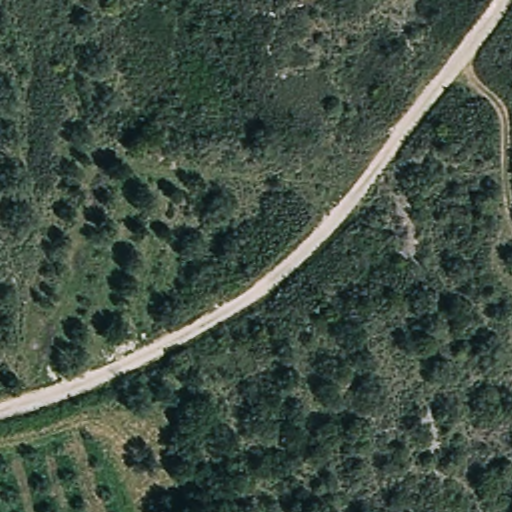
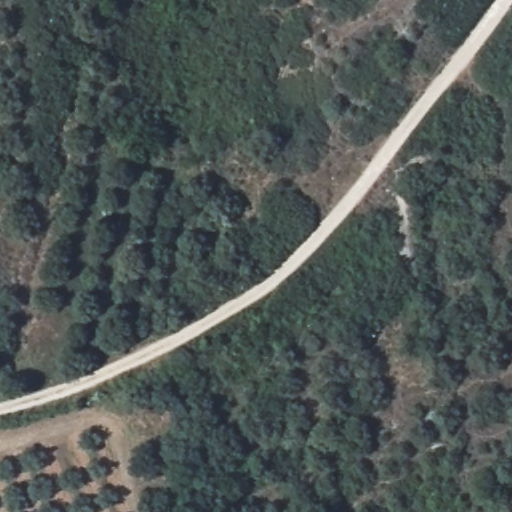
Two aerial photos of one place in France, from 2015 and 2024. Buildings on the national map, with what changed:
unchanged [(458,167),(435,168),(434,150),(457,147),(458,167)]

